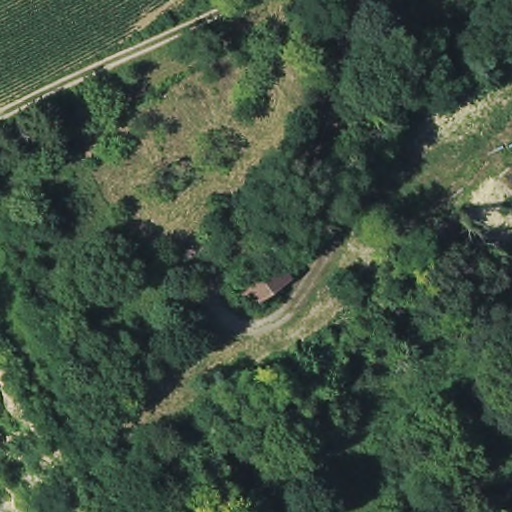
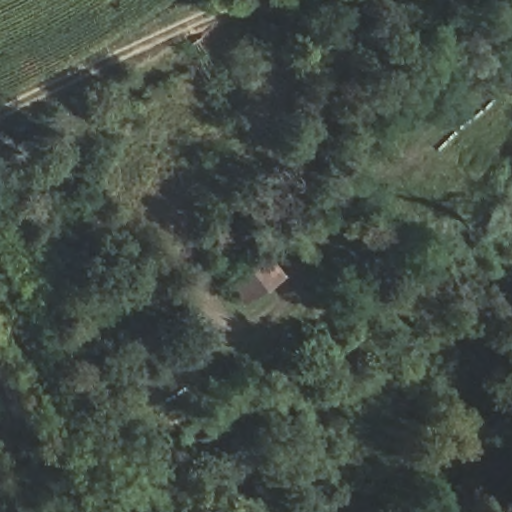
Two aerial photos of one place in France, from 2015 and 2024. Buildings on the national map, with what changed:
unchanged [(277,279),(244,303),(241,299),(232,283),(265,259),(275,275),(277,279)]

